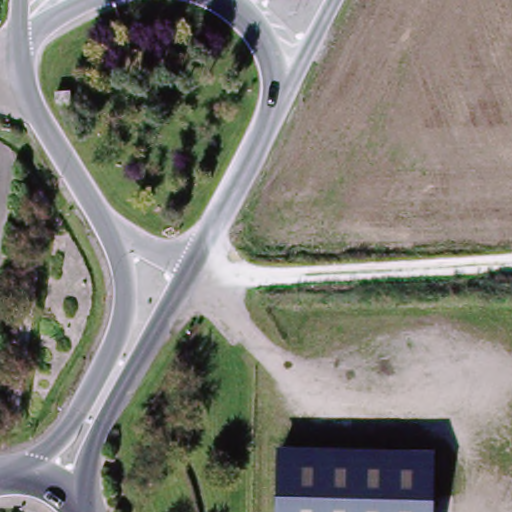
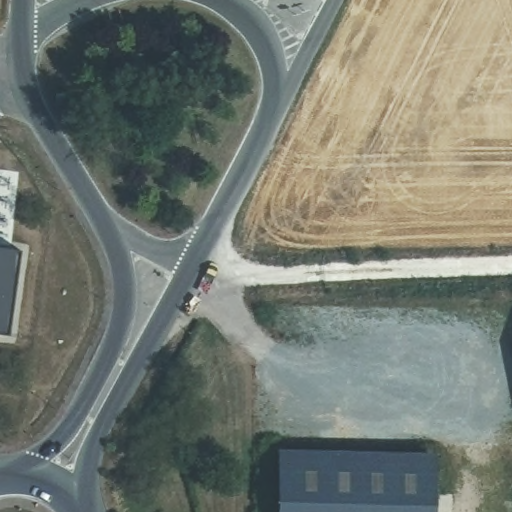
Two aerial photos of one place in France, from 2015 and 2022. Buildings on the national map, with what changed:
new [(21,251),(9,336),(0,335),(0,248),(21,251)]
unchanged [(436,452),(433,512),(276,512),(278,448),(436,452)]

